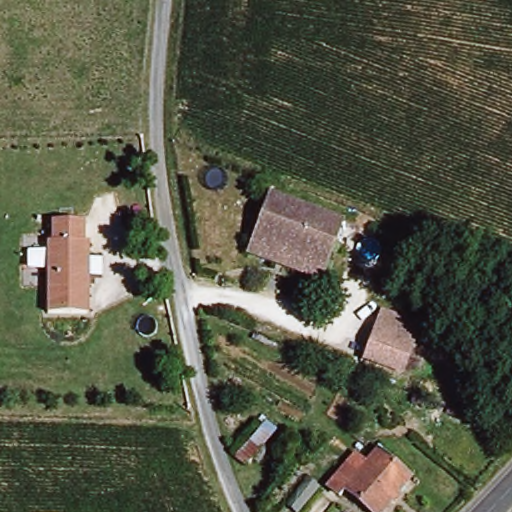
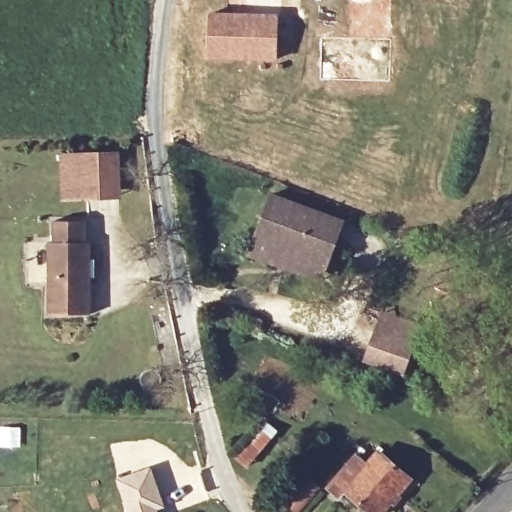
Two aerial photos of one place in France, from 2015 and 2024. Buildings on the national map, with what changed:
new [(209,11),(279,13),(277,62),(207,59),(209,11)]
new [(122,198),(59,199),(57,154),(119,151),(122,198)]
unchanged [(342,220),(327,262),(276,244),(269,262),(249,255),(271,194),(342,220)]
unchanged [(44,240),(50,241),(49,220),(79,218),(80,238),(85,238),(89,310),(49,313),(44,240)]
unchanged [(366,357),(377,326),(383,312),(421,326),(416,340),(404,371),(366,357)]
unchanged [(407,478),(374,512),(373,512),(346,485),(336,495),(326,485),(345,465),(356,475),(378,451),(407,478)]
new [(154,466),(166,503),(158,505),(160,512),(113,512),(104,481),(154,466)]

